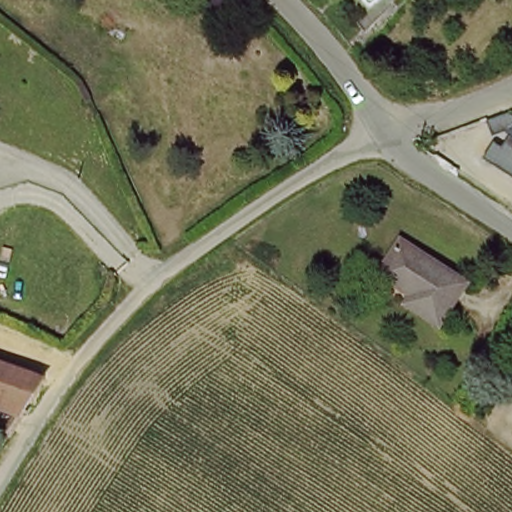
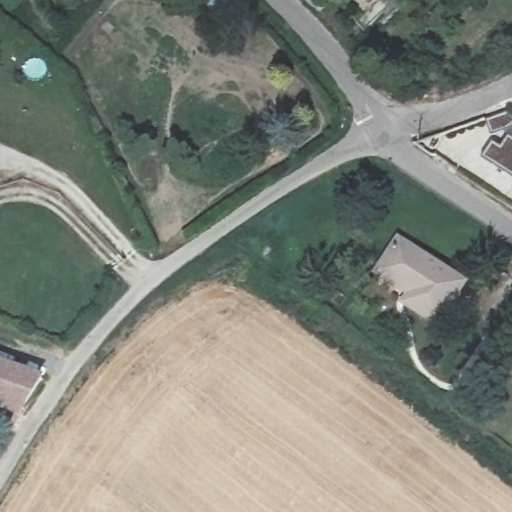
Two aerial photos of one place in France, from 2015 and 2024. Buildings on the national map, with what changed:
unchanged [(492,138),(501,144),(508,132),(512,134),(512,174),(481,155),(492,138)]
unchanged [(468,287),(437,330),(403,304),(412,293),(376,267),(397,236),(468,287)]
unchanged [(0,410),(0,364),(43,378),(20,417),(0,410)]

